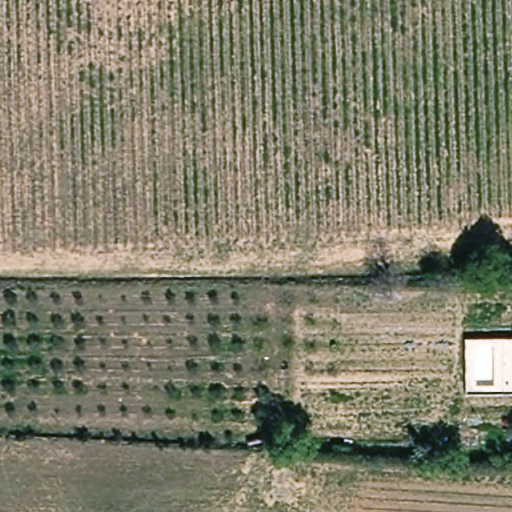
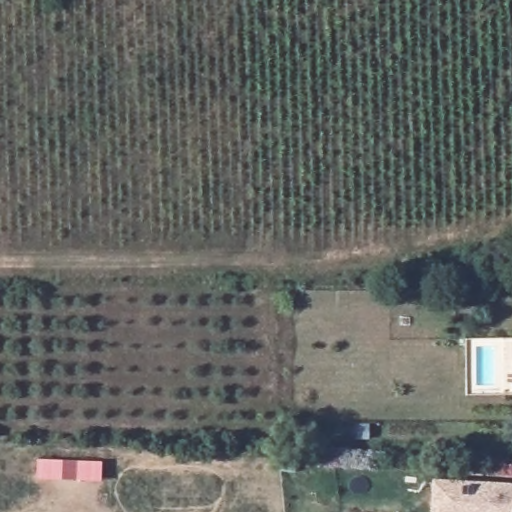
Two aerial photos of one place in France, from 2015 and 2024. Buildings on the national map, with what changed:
new [(454,480),(512,483),(512,512),(434,512),(436,480),(454,480)]

